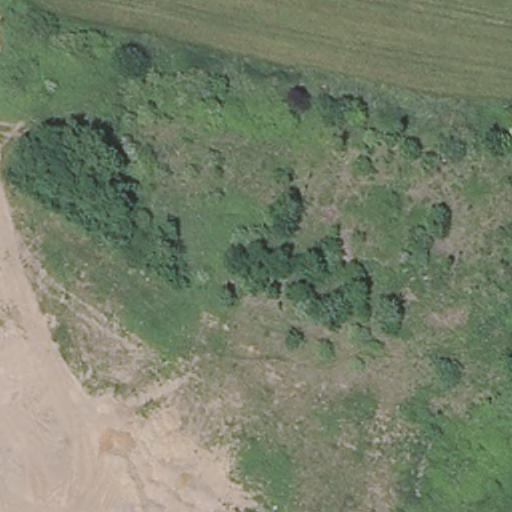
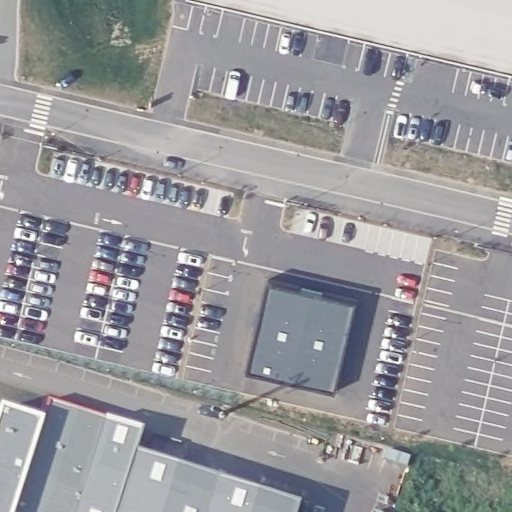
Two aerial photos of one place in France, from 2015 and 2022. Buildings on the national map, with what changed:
new [(209,0),(512,0),(512,71),(209,0)]
new [(355,302),(341,391),(255,374),(274,289),(355,302)]
new [(146,430),(138,452),(301,506),(299,512),(0,512),(0,428),(6,410),(44,422),(51,400),(110,419),(146,430)]

